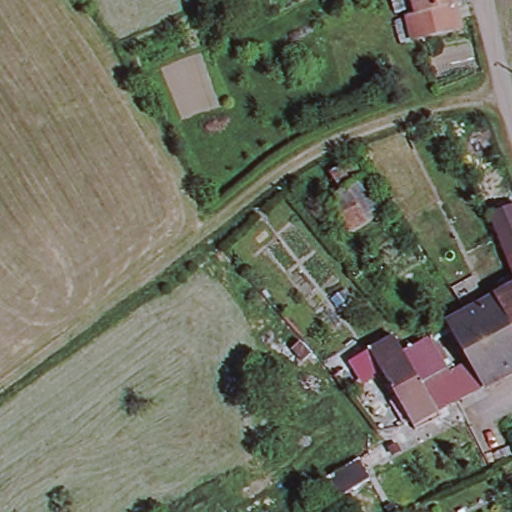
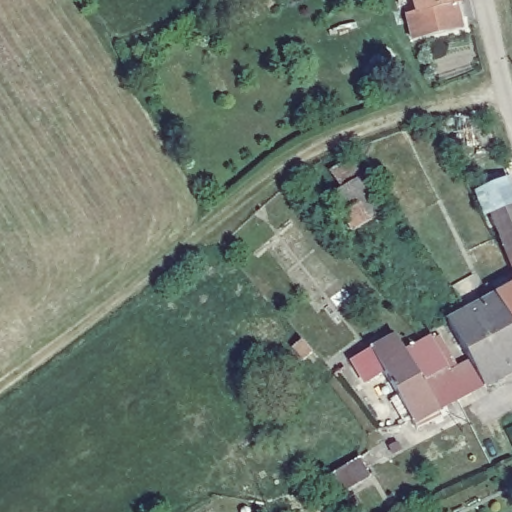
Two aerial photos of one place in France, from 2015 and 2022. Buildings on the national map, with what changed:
unchanged [(416,13),(413,0),(459,0),(460,3),(455,4),(461,29),(422,37),(410,40),(405,15),(416,13)]
unchanged [(330,193),(361,174),(383,209),(365,220),(352,228),(341,211),(330,193)]
unchanged [(512,209),(512,271),(490,217),(512,209)]
unchanged [(512,327),(512,374),(507,377),(470,313),(490,301),(484,288),(490,285),(496,298),(512,327)]
unchanged [(512,289),(512,327),(496,298),(512,289)]
unchanged [(422,388),(450,374),(455,370),(470,363),(447,325),(470,312),(470,313),(507,377),(484,388),(468,396),(435,413),(422,388)]
unchanged [(312,350),(302,358),(292,346),(302,338),(312,350)]
unchanged [(410,423),(397,401),(370,351),(395,338),(402,354),(422,388),(435,413),(412,427),(410,423)]
unchanged [(402,354),(429,338),(450,374),(422,388),(402,354)]
unchanged [(345,466),(352,461),(358,462),(363,470),(334,488),(325,476),(344,464),(345,466)]

